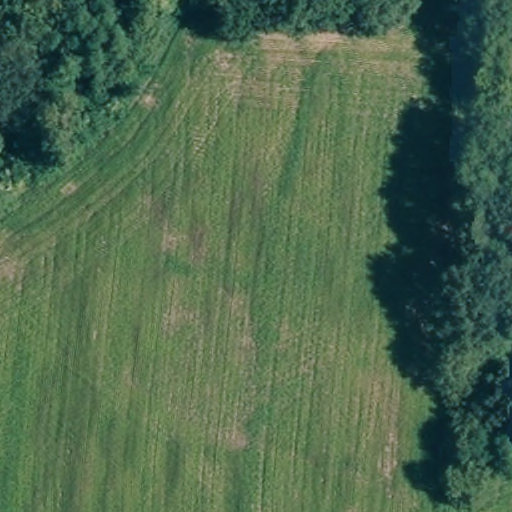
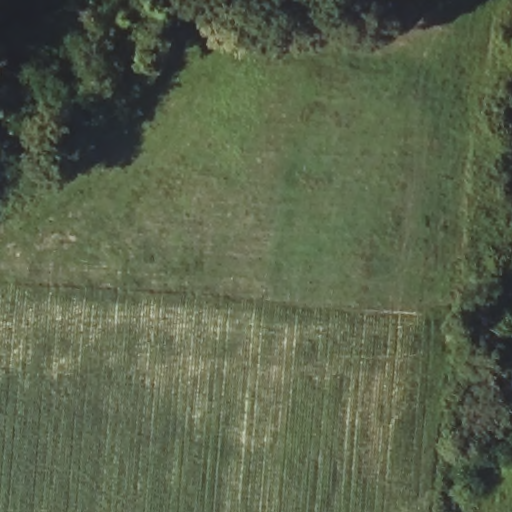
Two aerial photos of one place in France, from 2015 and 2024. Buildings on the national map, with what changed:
[]

